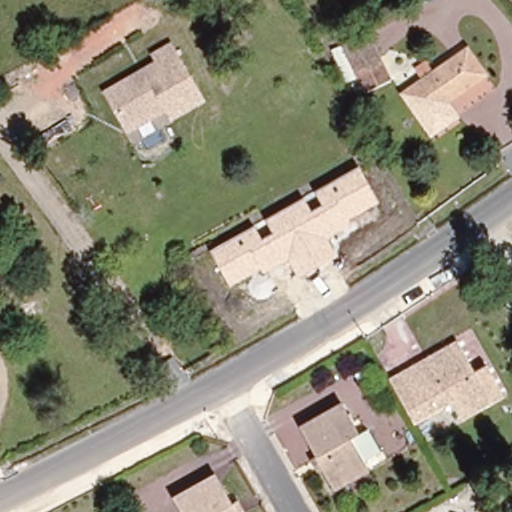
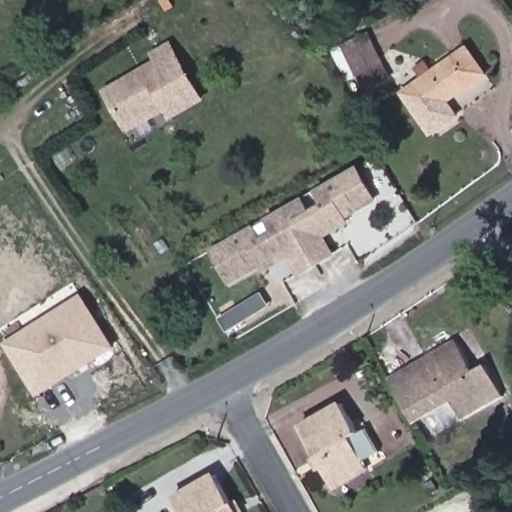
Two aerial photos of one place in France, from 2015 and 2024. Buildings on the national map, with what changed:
unchanged [(210,20),(220,22),(216,37),(206,35),(210,20)]
unchanged [(105,90),(155,60),(150,53),(171,40),(206,101),(172,121),(167,112),(127,132),(105,90)]
unchanged [(347,55),(374,44),(388,75),(362,87),(347,55)]
unchanged [(483,80),(445,106),(455,122),(430,140),(402,99),(422,85),(414,73),(424,66),(432,78),(465,55),(483,80)]
unchanged [(348,219),(351,224),(327,237),(336,255),(299,276),(289,260),(262,274),(259,268),(230,285),(211,252),(255,225),(261,237),(271,232),(265,220),(303,197),(311,211),(321,205),(315,192),(360,166),(379,200),(348,219)]
new [(4,342),(84,293),(117,348),(38,398),(4,342)]
new [(262,293),(270,306),(243,320),(225,331),(217,318),(236,307),(262,293)]
unchanged [(454,341),(471,371),(482,365),(499,393),(456,418),(445,399),(409,418),(386,380),(454,341)]
unchanged [(330,490),(295,427),(338,402),(355,432),(363,427),(376,450),(360,460),(365,470),(330,490)]
unchanged [(170,497),(211,472),(235,512),(179,512),(170,497)]

